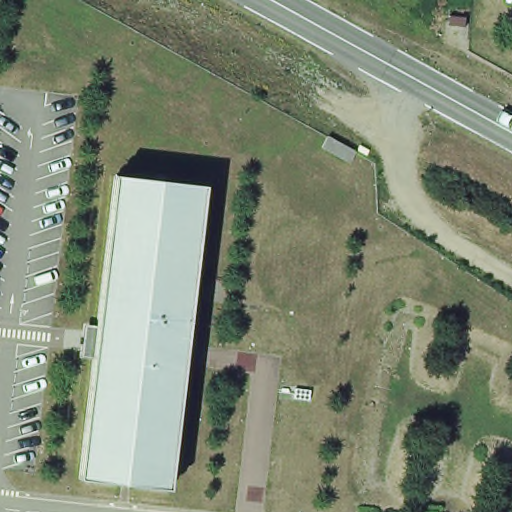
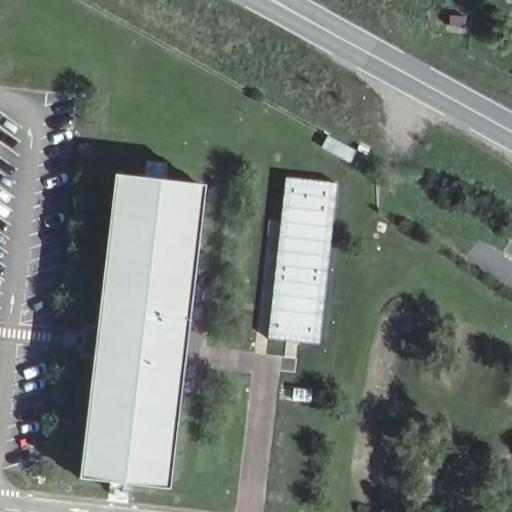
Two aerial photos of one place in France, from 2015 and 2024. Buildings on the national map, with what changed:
unchanged [(466,14),(466,25),(450,25),(450,14),(466,14)]
unchanged [(355,149),(349,161),(320,147),(327,134),(355,149)]
unchanged [(198,186),(163,488),(73,478),(110,175),(198,186)]
new [(285,177),(335,182),(326,265),(320,291),(315,342),(268,338),(285,177)]

